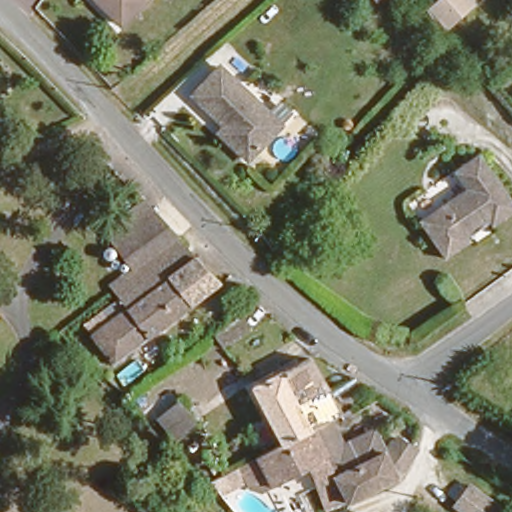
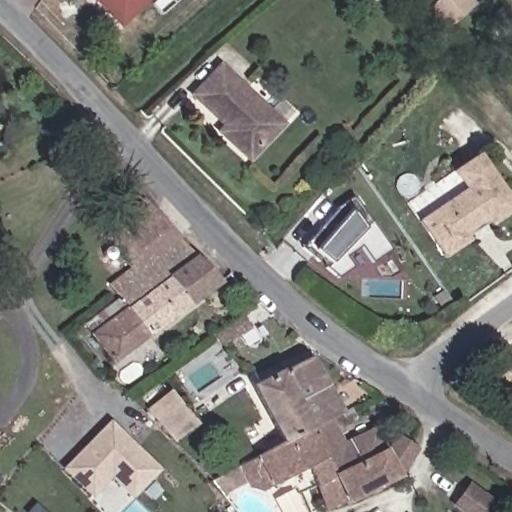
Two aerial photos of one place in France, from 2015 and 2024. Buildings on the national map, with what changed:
unchanged [(116,17),(99,0),(135,0),(116,17)]
new [(377,3),(375,0),(381,0),(377,3)]
unchanged [(448,30),(425,8),(434,0),(471,0),(475,4),(448,30)]
unchanged [(245,155),(222,132),(231,122),(224,113),(219,117),(196,92),(225,67),(277,126),(245,155)]
unchanged [(490,207),(482,214),(475,209),(468,217),(473,223),(465,230),(471,238),(453,252),(426,220),(465,182),(450,164),(467,147),(512,197),(512,200),(498,214),(490,207)]
new [(337,208),(355,197),(393,253),(376,263),(365,246),(345,260),(353,273),(340,283),(325,268),(327,266),(324,260),(318,263),(303,251),(337,208)]
unchanged [(134,310),(122,296),(132,289),(115,261),(129,249),(125,244),(111,225),(142,201),(196,259),(134,310)]
unchanged [(95,342),(134,310),(196,259),(215,280),(112,363),(95,342)]
unchanged [(344,407),(331,415),(316,424),(335,464),(385,444),(400,475),(331,504),(308,464),(255,488),(244,456),(270,437),(250,394),(308,355),(344,407)]
new [(146,409),(170,390),(199,424),(175,444),(146,409)]
unchanged [(346,441),(375,428),(385,444),(335,464),(316,424),(331,415),(346,441)]
new [(162,471),(134,502),(110,480),(91,499),(62,470),(111,420),(162,471)]
unchanged [(460,512),(450,503),(466,479),(502,507),(500,512),(460,512)]

